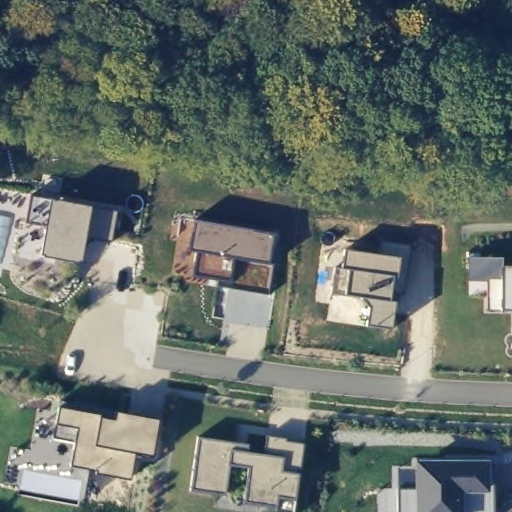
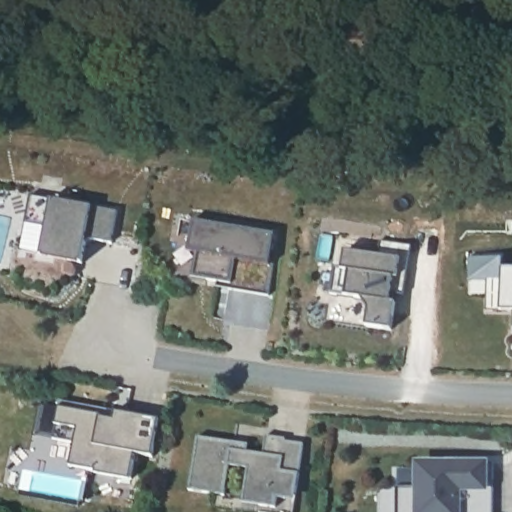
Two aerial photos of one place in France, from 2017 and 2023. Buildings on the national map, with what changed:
unchanged [(117,210),(112,243),(87,237),(82,261),(76,263),(45,257),(41,255),(46,225),(25,222),(32,195),(117,210)]
unchanged [(267,293),(217,285),(218,281),(192,275),(195,253),(190,251),(194,220),(274,232),(267,293)]
unchanged [(365,326),(368,308),(357,295),(330,293),(334,265),(340,266),(342,250),(379,255),(376,272),(405,276),(404,295),(392,294),(389,328),(365,326)]
unchanged [(487,311),(487,281),(469,281),(470,257),(502,258),(502,268),(512,268),(512,310),(487,311)]
unchanged [(152,457),(135,454),(130,481),(69,468),(73,442),(52,439),(57,400),(160,418),(152,457)]
unchanged [(249,452),(264,455),(266,435),(286,438),(285,442),(303,443),(294,512),(250,512),(214,507),(217,495),(192,491),(199,437),(249,445),(249,452)]
unchanged [(495,512),(378,512),(379,489),(398,488),(397,469),(415,469),(415,461),(495,460),(495,512)]

